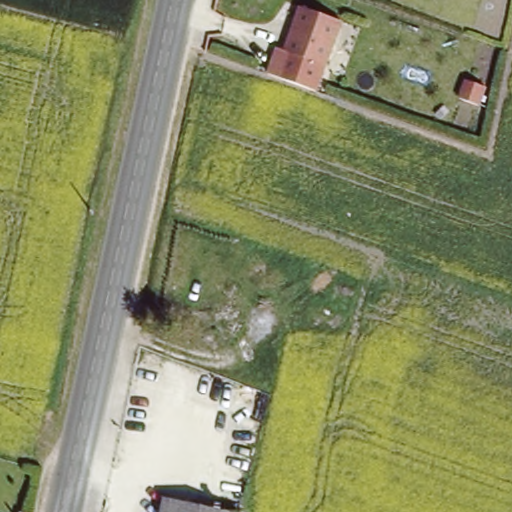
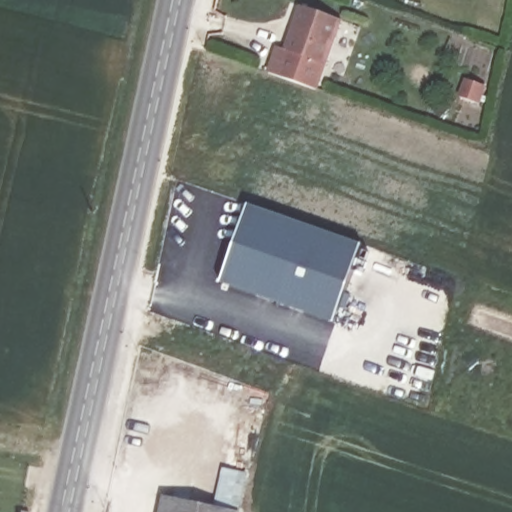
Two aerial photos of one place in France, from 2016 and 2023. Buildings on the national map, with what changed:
unchanged [(298,1),(339,16),(323,60),(281,45),(298,1)]
unchanged [(323,60),(313,89),(266,72),(276,44),(281,45),(323,60)]
new [(248,206),(364,246),(336,323),(221,283),(248,206)]
unchanged [(243,512),(167,512),(171,496),(243,512)]

